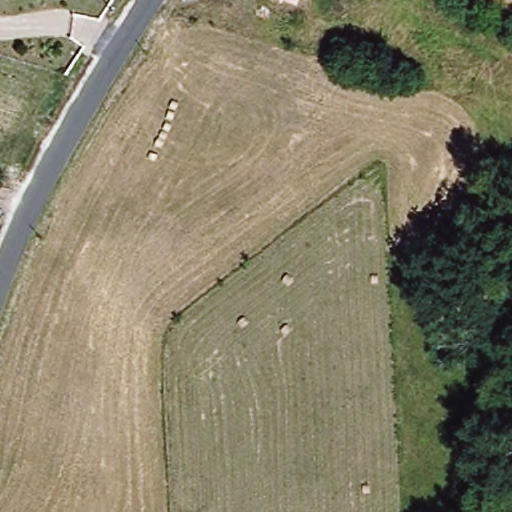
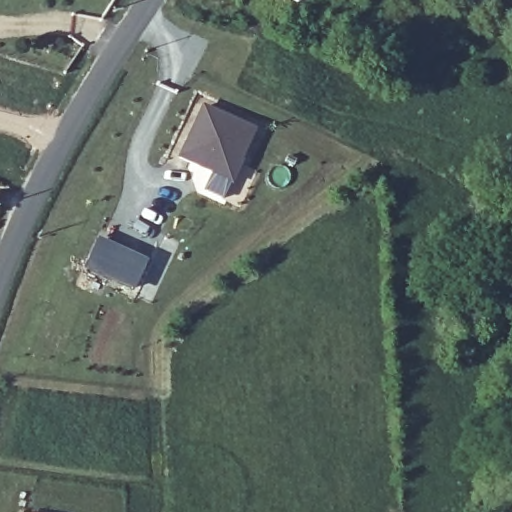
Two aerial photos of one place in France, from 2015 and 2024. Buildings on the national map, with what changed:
unchanged [(286,0),(301,0),(298,6),(286,0)]
new [(205,108),(256,131),(233,182),(182,158),(205,108)]
new [(99,235),(155,261),(139,297),(82,271),(99,235)]

